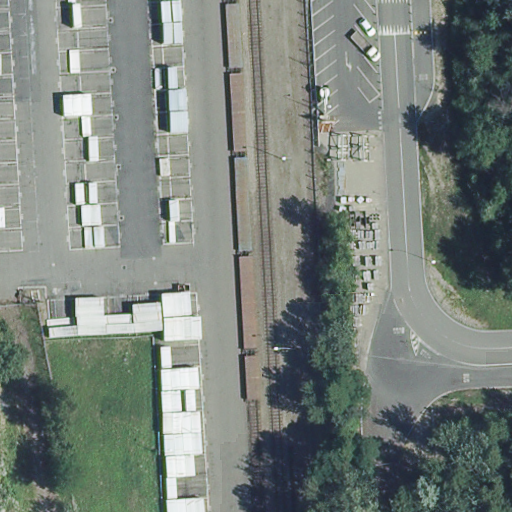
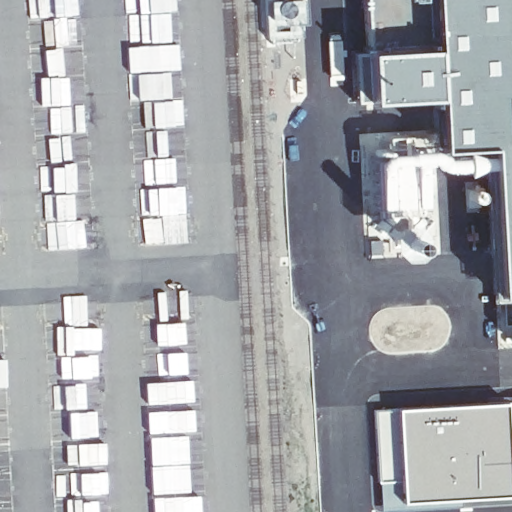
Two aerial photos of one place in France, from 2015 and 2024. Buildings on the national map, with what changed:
new [(492,297),(484,144),(440,149),(437,101),(358,103),(355,55),(364,53),(361,0),(512,0),(512,296),(492,297)]
new [(399,411),(512,405),(512,497),(462,500),(463,511),(380,512),(377,482),(375,411),(399,411)]

